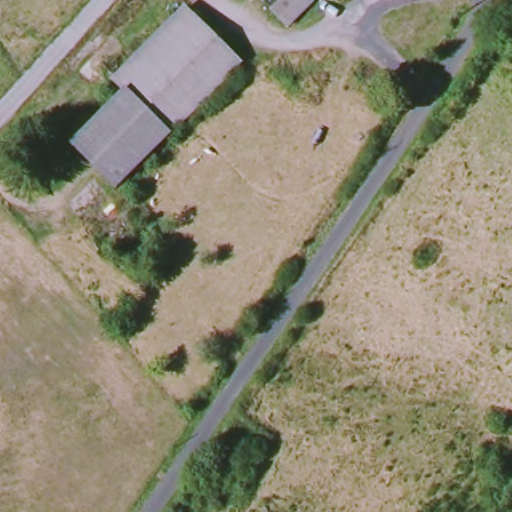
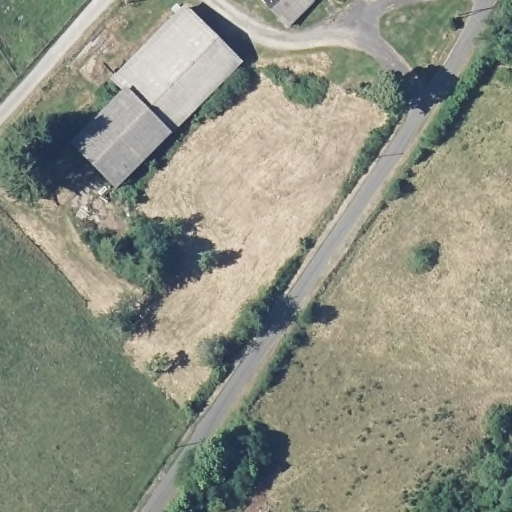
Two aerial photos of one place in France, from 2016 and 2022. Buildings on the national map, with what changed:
unchanged [(322,5),(299,31),(267,0),(318,0),(322,5)]
unchanged [(358,10),(348,0),(368,0),(358,10)]
unchanged [(75,145),(128,91),(116,80),(189,7),(247,63),(176,136),(120,193),(75,145)]

